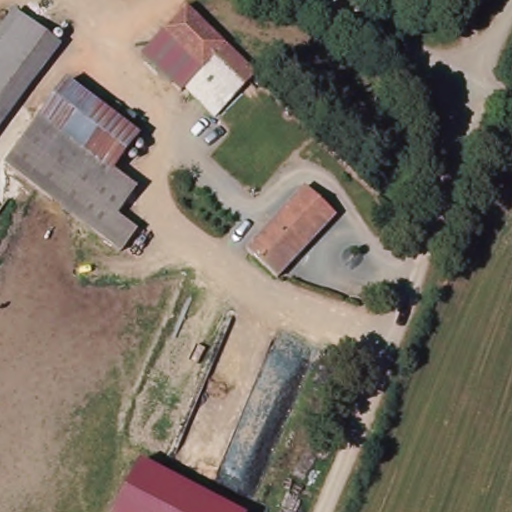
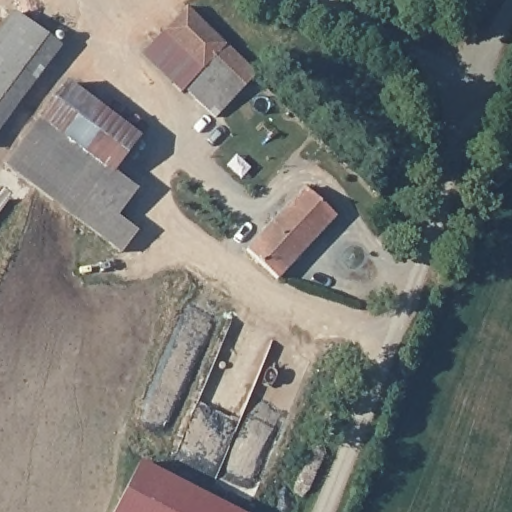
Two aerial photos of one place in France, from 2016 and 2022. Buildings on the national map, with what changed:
unchanged [(189,3),(258,75),(210,115),(145,44),(189,3)]
unchanged [(0,117),(0,50),(26,18),(59,46),(0,117)]
unchanged [(144,141),(115,173),(139,195),(119,217),(138,235),(120,255),(9,157),(76,81),(144,141)]
unchanged [(339,215),(283,277),(253,249),(310,186),(339,215)]
unchanged [(112,512),(138,461),(233,512),(112,512)]

